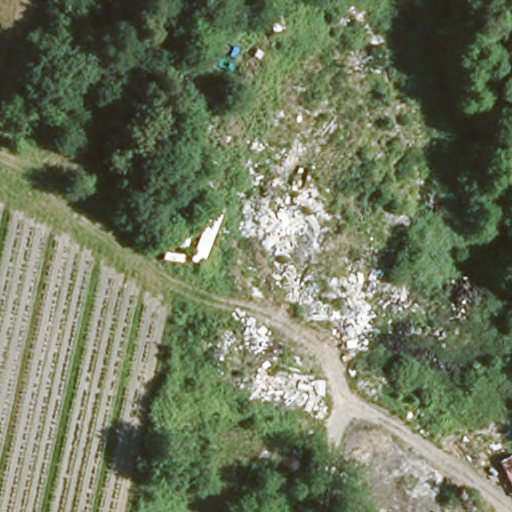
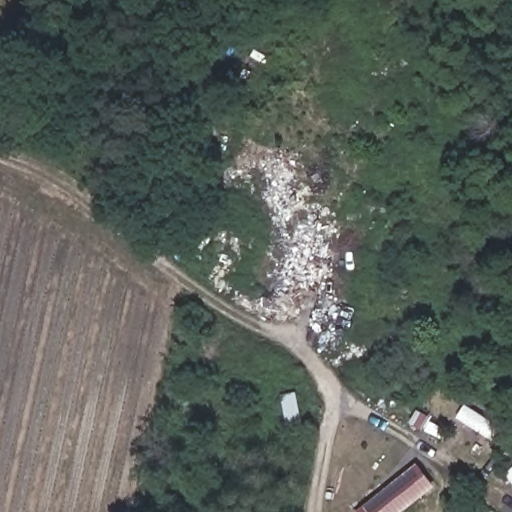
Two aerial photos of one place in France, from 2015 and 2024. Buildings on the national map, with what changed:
unchanged [(381,381),(417,402),(410,419),(373,393),(381,381)]
new [(421,467),(437,487),(405,512),(363,512),(403,475),(416,471),(421,467)]
unchanged [(477,512),(442,512),(442,507),(477,512)]

